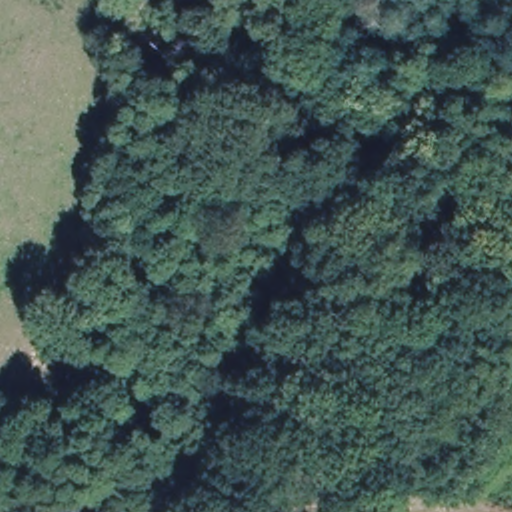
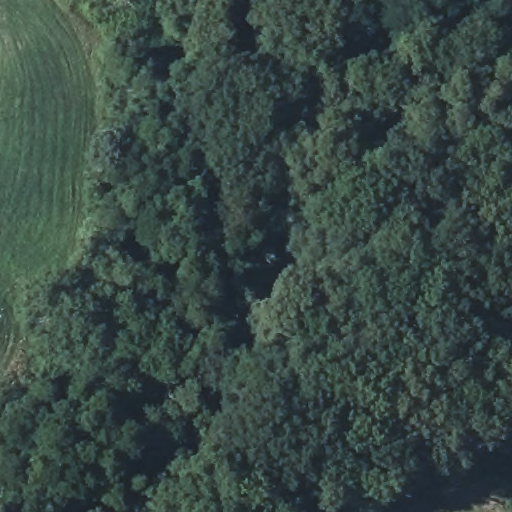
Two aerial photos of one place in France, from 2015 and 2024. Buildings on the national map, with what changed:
[]

